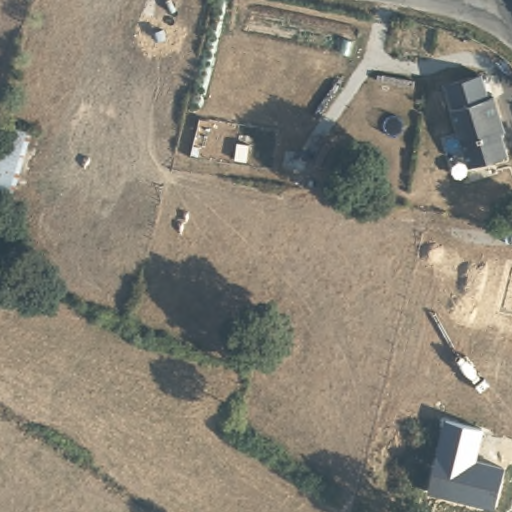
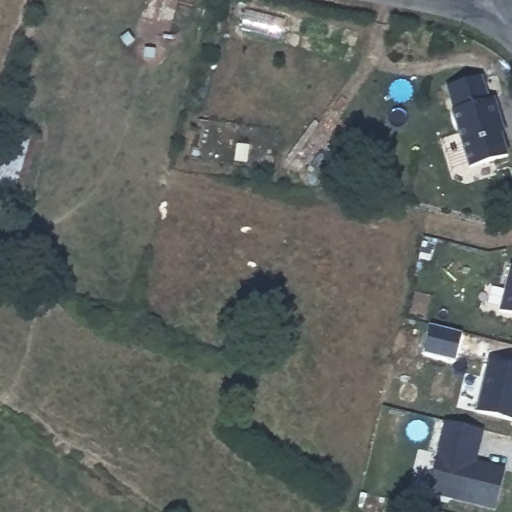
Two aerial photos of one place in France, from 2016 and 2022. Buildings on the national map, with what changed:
unchanged [(503,119),(500,120),(509,156),(471,166),(455,108),(460,107),(453,83),(482,75),(489,100),(497,97),(503,119)]
unchanged [(15,190),(0,187),(0,122),(31,130),(15,190)]
unchanged [(499,308),(508,267),(512,268),(512,312),(499,308)]
new [(490,359),(512,365),(512,419),(477,410),(490,359)]
unchanged [(494,510),(425,495),(441,422),(482,430),(476,462),(506,470),(494,510)]

